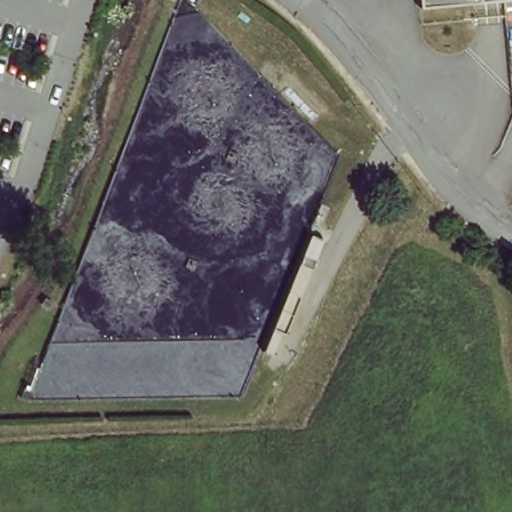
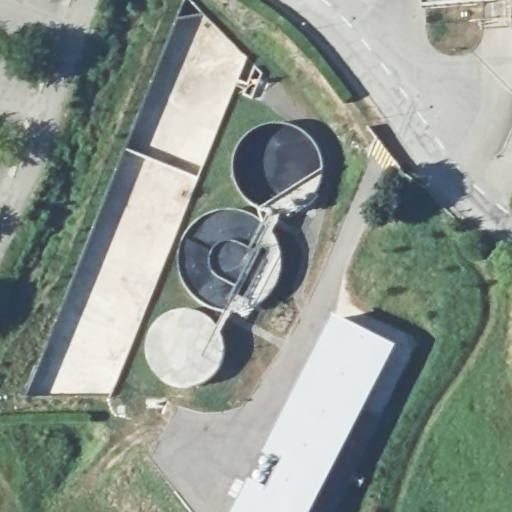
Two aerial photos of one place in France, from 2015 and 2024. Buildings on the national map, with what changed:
unchanged [(419,11),(418,0),(512,0),(512,8),(488,10),(419,11)]
new [(311,244),(324,249),(285,341),(282,339),(272,362),(264,359),(311,244)]
new [(250,482),(268,491),(280,464),(263,455),(335,317),(394,348),(312,512),(234,512),(250,482)]

